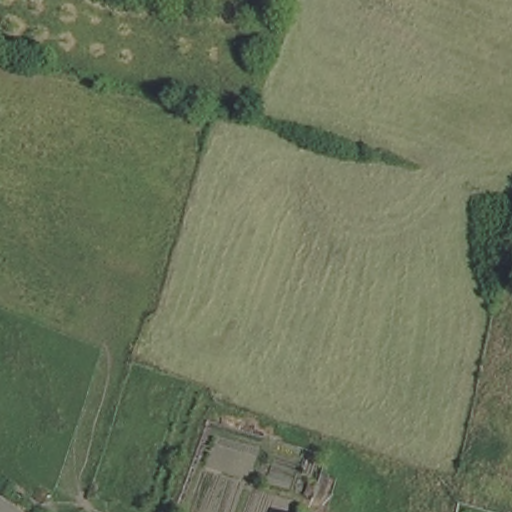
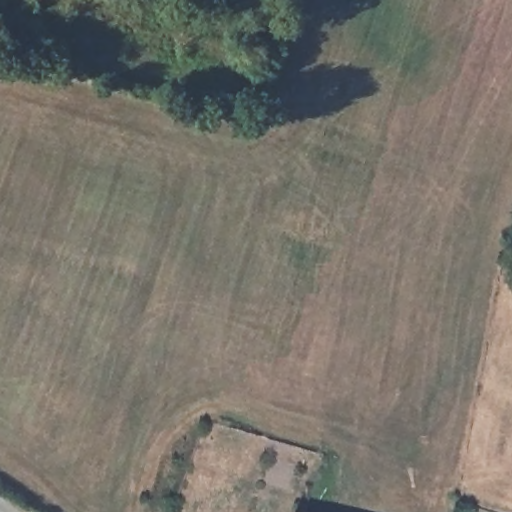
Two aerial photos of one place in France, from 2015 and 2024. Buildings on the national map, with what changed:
[]

